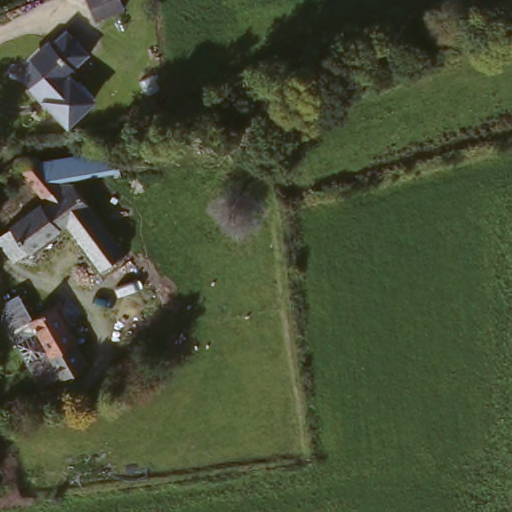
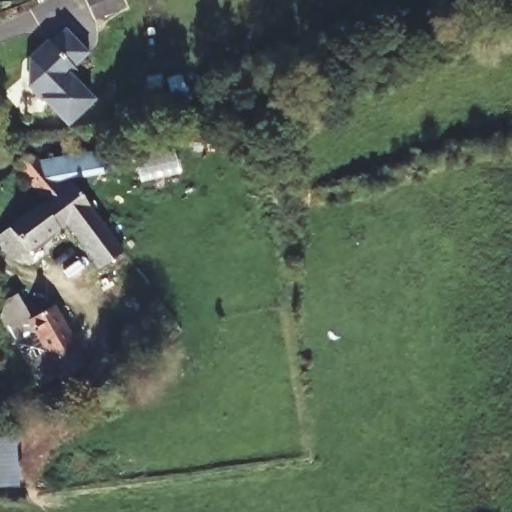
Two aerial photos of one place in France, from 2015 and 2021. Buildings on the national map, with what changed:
unchanged [(123,17),(91,31),(80,4),(86,0),(116,0),(123,17)]
unchanged [(86,103),(60,129),(25,97),(26,95),(25,90),(23,83),(24,77),(26,71),(26,69),(24,66),(41,49),(56,35),(82,60),(73,69),(62,80),(86,103)]
unchanged [(39,178),(58,197),(68,189),(83,209),(76,217),(4,272),(0,266),(0,239),(36,209),(39,213),(44,208),(8,172),(28,168),(39,178)]
unchanged [(83,225),(119,269),(101,284),(63,237),(81,223),(83,225)]
unchanged [(48,313),(71,349),(48,363),(26,327),(48,313)]
new [(20,484),(0,486),(0,443),(17,442),(20,484)]

